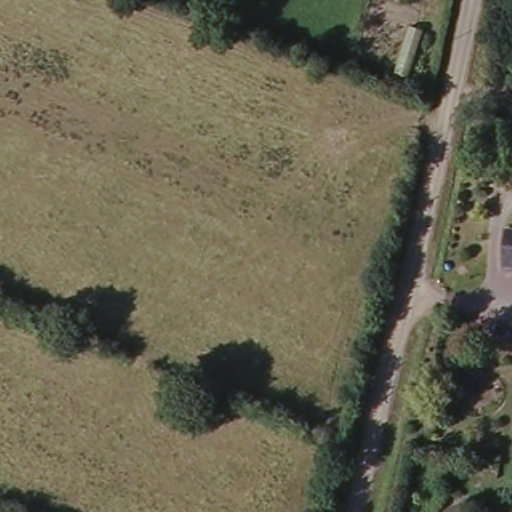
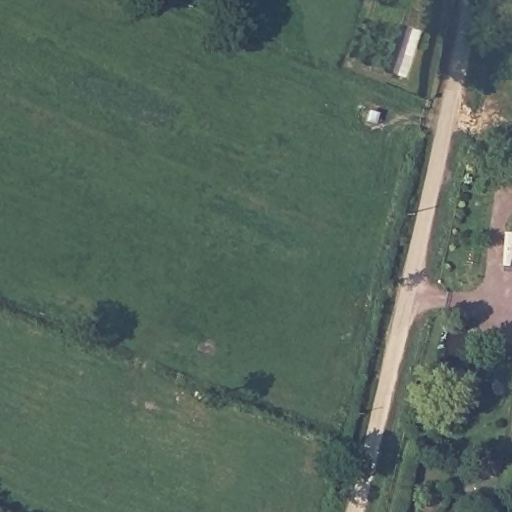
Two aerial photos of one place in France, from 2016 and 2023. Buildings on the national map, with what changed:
unchanged [(501,267),(503,234),(512,235),(512,268),(501,267)]

